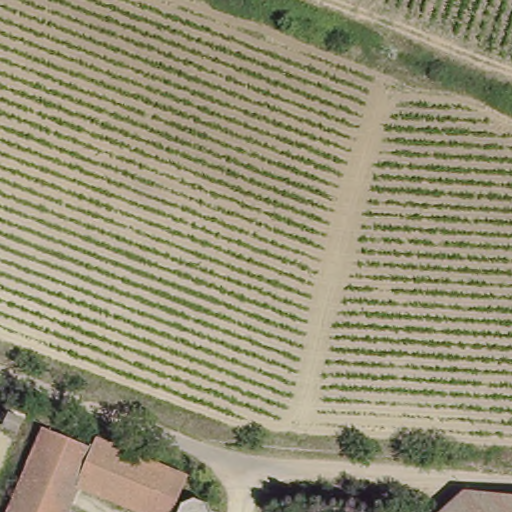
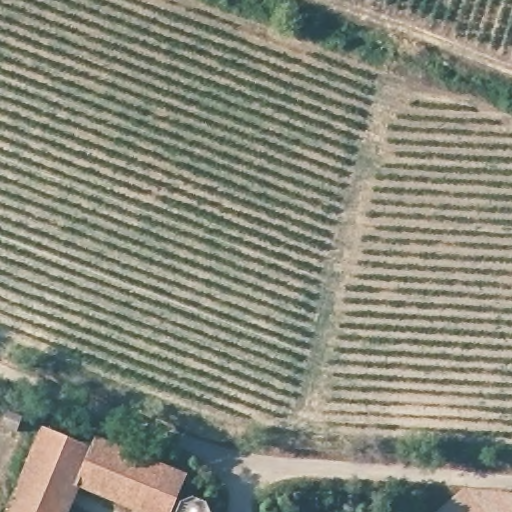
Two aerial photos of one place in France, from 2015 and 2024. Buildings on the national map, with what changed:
unchanged [(95,435),(75,480),(60,512),(1,512),(47,413),(95,435)]
unchanged [(164,512),(149,512),(75,480),(95,435),(181,472),(164,512)]
unchanged [(442,501),(445,495),(512,502),(512,512),(431,512),(442,501)]
unchanged [(187,499),(216,512),(181,512),(187,499)]

